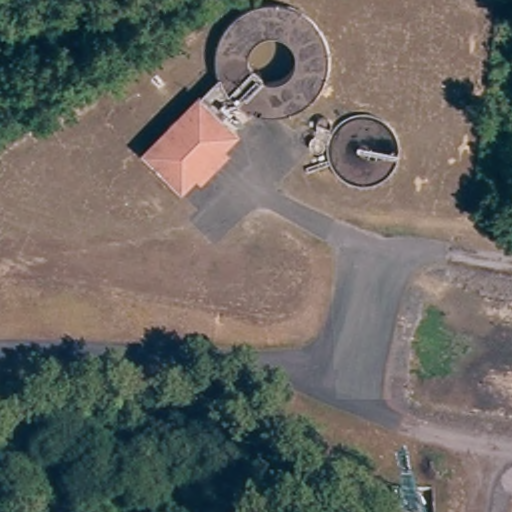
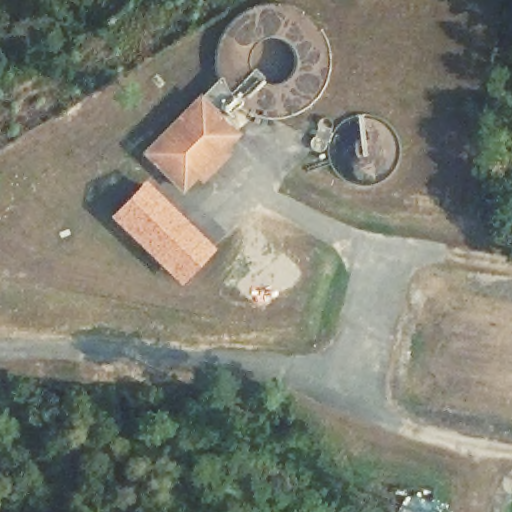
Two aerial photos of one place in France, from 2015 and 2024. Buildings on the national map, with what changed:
unchanged [(236,132),(179,193),(138,153),(196,92),(236,132)]
unchanged [(325,143),(326,151),(314,156),(307,150),(308,142),(310,137),(314,137),(315,131),(314,125),(317,120),(321,118),(326,117),(329,118),(332,130),(329,135),(325,143)]
new [(144,179),(216,249),(179,287),(108,217),(144,179)]

